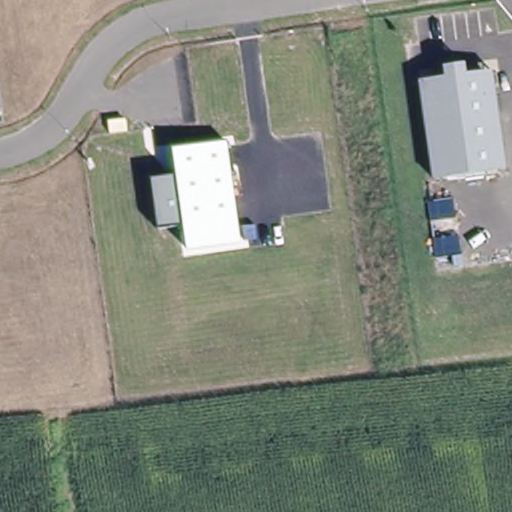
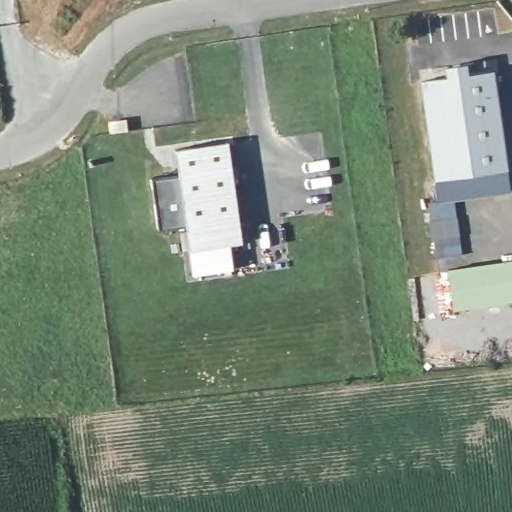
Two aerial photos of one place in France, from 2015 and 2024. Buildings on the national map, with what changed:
unchanged [(437,181),(423,82),(450,79),(448,68),(468,66),(470,76),(488,74),(496,72),(503,121),(510,172),(437,181)]
unchanged [(228,141),(241,244),(187,251),(185,225),(157,227),(152,179),(176,172),(174,149),(228,141)]
new [(512,301),(451,311),(447,270),(512,259),(512,301)]

